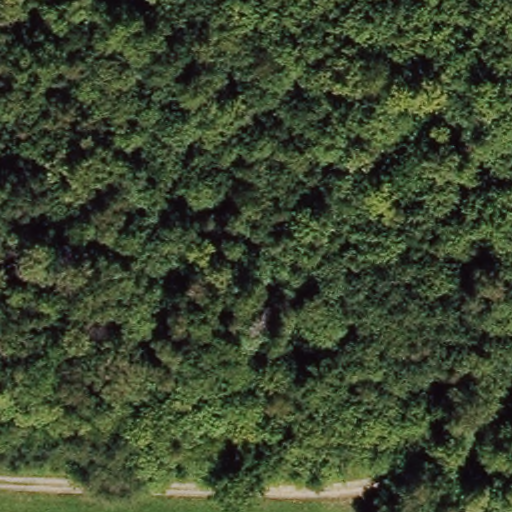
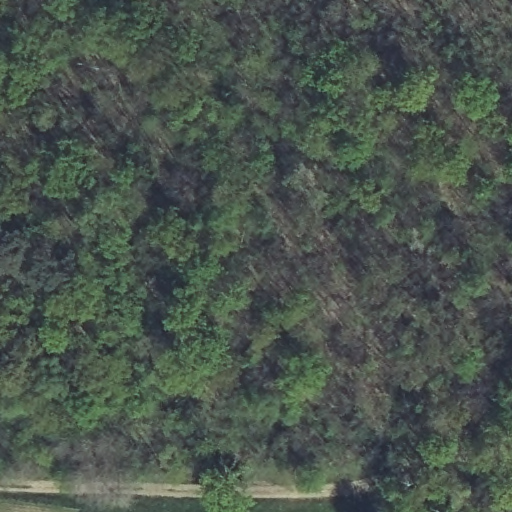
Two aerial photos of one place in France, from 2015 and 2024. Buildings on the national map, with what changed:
[]

